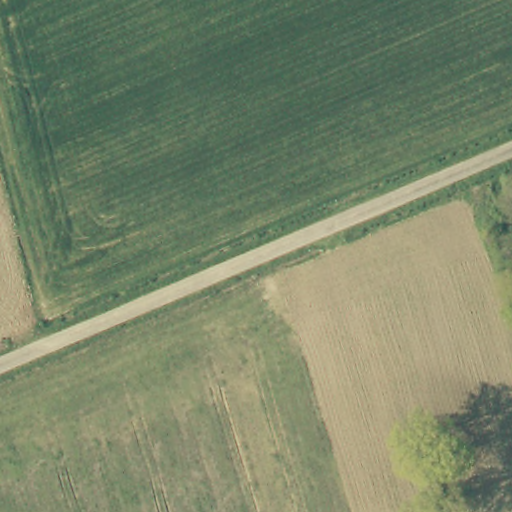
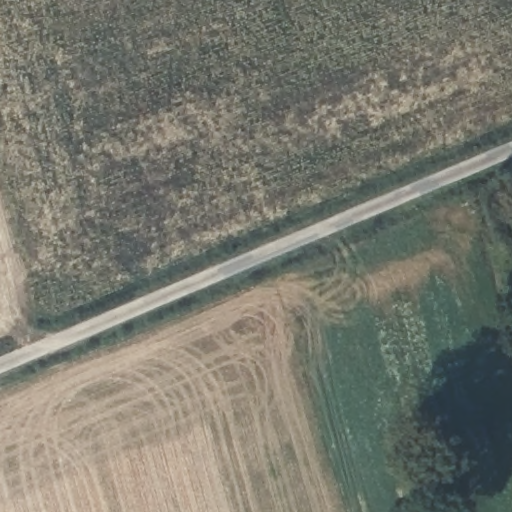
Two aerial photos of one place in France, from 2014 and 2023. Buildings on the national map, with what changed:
[]

